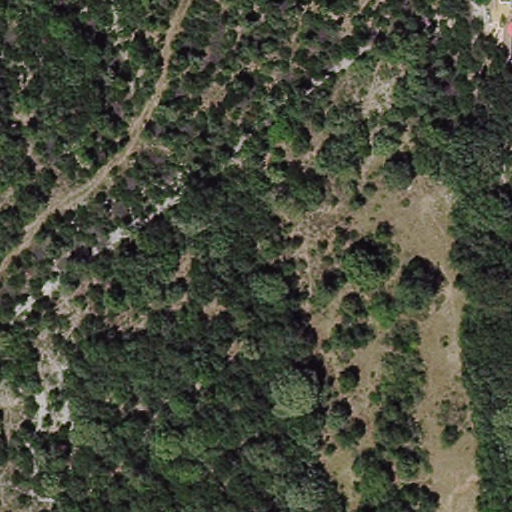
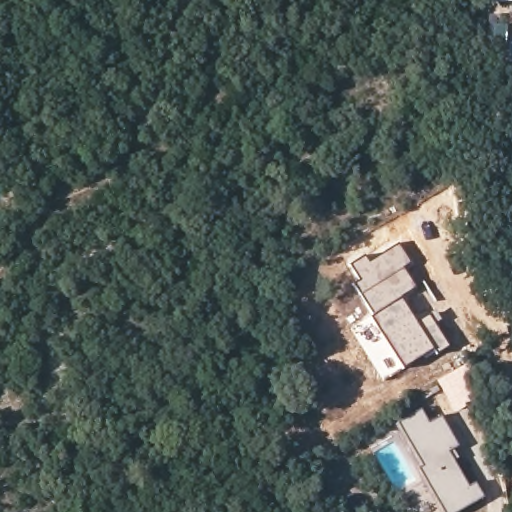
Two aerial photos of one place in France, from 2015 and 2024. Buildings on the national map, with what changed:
unchanged [(512,3),(499,5),(499,0),(512,0),(512,3)]
new [(355,284),(361,281),(350,264),(365,255),(370,262),(398,244),(410,262),(402,267),(415,287),(402,295),(403,297),(373,315),(355,284)]
new [(403,297),(417,320),(430,312),(448,345),(402,370),(370,317),(403,297)]
new [(455,413),(437,381),(467,363),(486,395),(455,413)]
new [(428,422),(441,415),(458,443),(449,449),(470,485),(479,480),(487,494),(454,512),(440,512),(413,465),(418,462),(395,422),(420,408),(428,422)]

